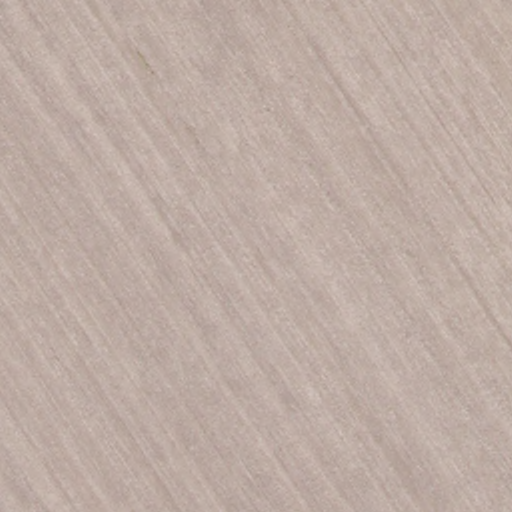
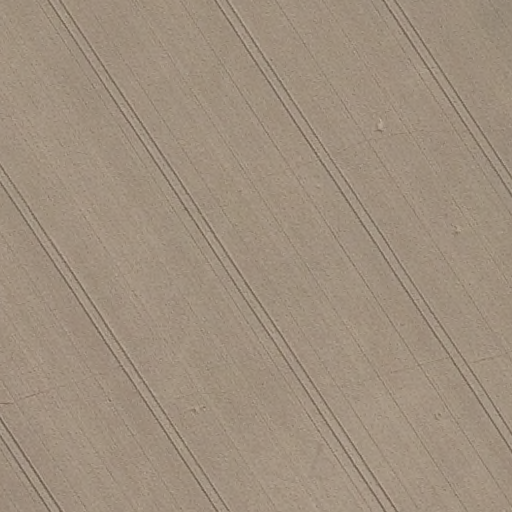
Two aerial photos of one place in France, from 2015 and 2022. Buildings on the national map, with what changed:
[]

